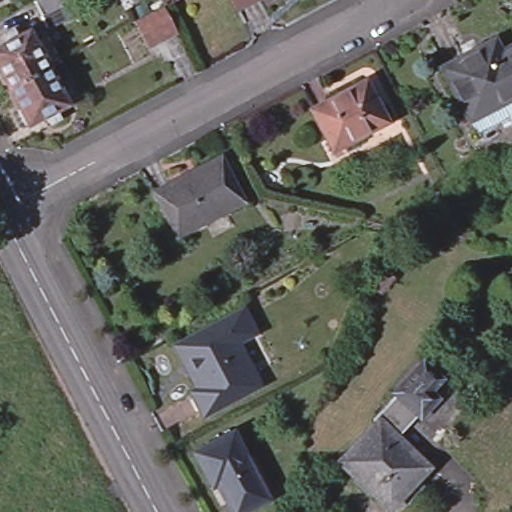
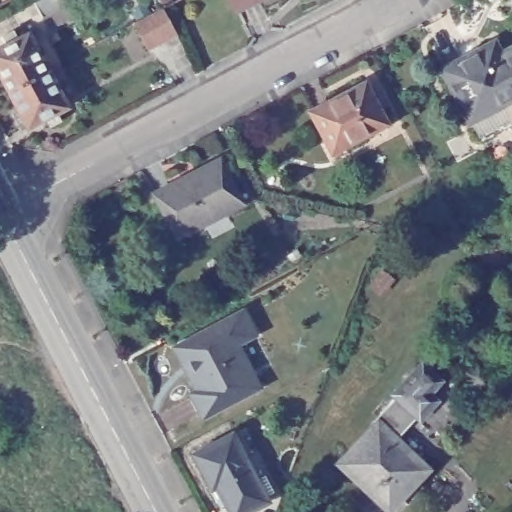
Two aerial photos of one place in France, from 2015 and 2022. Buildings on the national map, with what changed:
unchanged [(0,0),(2,0),(0,1),(0,0)]
unchanged [(47,33),(40,20),(33,5),(42,0),(63,0),(66,7),(73,19),(47,33)]
unchanged [(234,6),(231,0),(245,0),(234,6)]
unchanged [(175,31),(146,46),(133,21),(161,5),(175,31)]
unchanged [(28,130),(27,129),(18,134),(10,116),(17,112),(7,94),(0,79),(0,49),(2,48),(0,43),(0,39),(12,33),(16,41),(28,35),(34,47),(46,41),(52,53),(60,67),(66,79),(54,86),(67,110),(56,116),(60,124),(46,131),(42,123),(28,130)]
unchanged [(469,120),(441,68),(493,40),(500,52),(512,74),(512,97),(469,120)]
unchanged [(500,52),(512,45),(512,74),(500,52)]
unchanged [(387,121),(331,151),(309,109),(365,79),(387,121)]
unchanged [(243,202),(176,237),(152,192),(219,156),(243,202)]
unchanged [(253,333),(235,342),(257,385),(202,414),(190,391),(195,388),(172,344),(240,309),(253,333)]
unchanged [(391,390),(420,359),(440,377),(427,391),(435,398),(417,417),(415,414),(395,437),(376,420),(373,417),(395,393),(391,390)]
unchanged [(395,437),(427,466),(390,507),(339,461),(376,420),(395,437)]
unchanged [(211,486),(193,451),(231,432),(267,499),(242,512),(231,512),(225,502),(217,505),(208,487),(211,486)]

